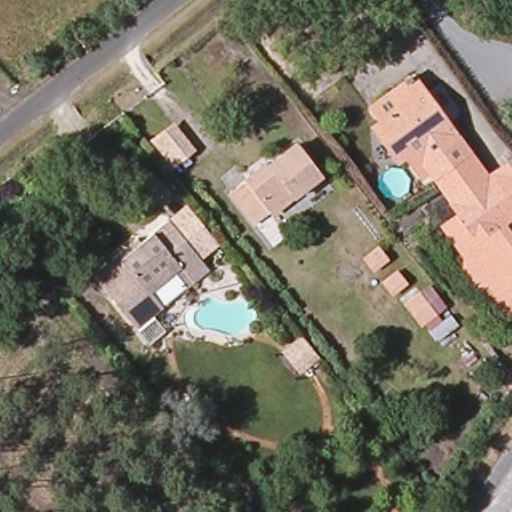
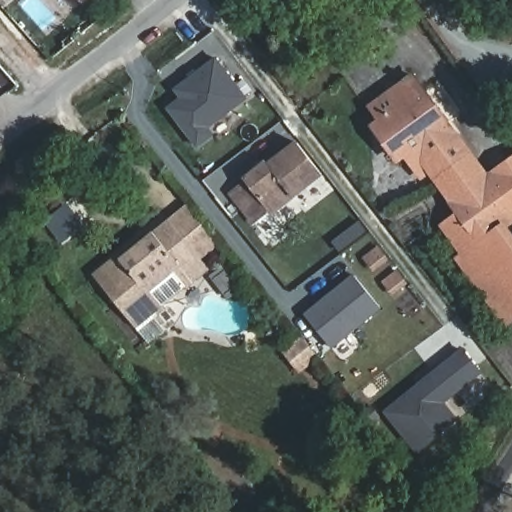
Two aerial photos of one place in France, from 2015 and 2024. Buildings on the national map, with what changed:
new [(78,0),(87,0),(82,5),(78,0)]
unchanged [(287,27),(295,20),(305,30),(296,37),(287,27)]
new [(208,130),(213,137),(197,149),(168,111),(181,100),(175,92),(215,61),(246,100),(208,130)]
unchanged [(373,126),(382,120),(371,105),(413,72),(470,150),(435,177),(423,161),(415,166),(405,151),(397,157),(373,126)]
unchanged [(265,167),(293,146),(316,177),(266,216),(263,215),(250,227),(225,195),(262,165),(265,167)]
unchanged [(435,177),(470,150),(487,174),(459,194),(457,208),(435,177)]
unchanged [(481,241),(457,208),(459,194),(487,174),(512,157),(512,218),(500,227),(481,241)]
unchanged [(136,241),(140,245),(168,222),(187,206),(217,245),(199,261),(208,271),(185,290),(172,274),(147,293),(117,255),(136,241)]
unchanged [(481,241),(500,227),(512,244),(512,315),(506,319),(505,320),(458,255),(463,252),(440,220),(457,208),(481,241)]
new [(378,248),(387,260),(377,267),(368,255),(378,248)]
demolished [(363,250),(373,261),(362,269),(354,257),(363,250)]
unchanged [(158,309),(137,325),(95,272),(117,255),(147,293),(158,309)]
new [(406,283),(396,292),(386,281),(396,272),(406,283)]
demolished [(391,285),(381,293),(372,282),(382,273),(391,285)]
new [(332,350),(305,317),(355,278),(381,311),(332,350)]
demolished [(436,316),(420,327),(405,307),(420,296),(436,316)]
demolished [(443,327),(423,343),(415,333),(435,317),(443,327)]
unchanged [(299,371),(280,351),(298,335),(315,355),(299,371)]
new [(443,406),(457,423),(418,455),(386,415),(463,353),(480,376),(443,406)]

